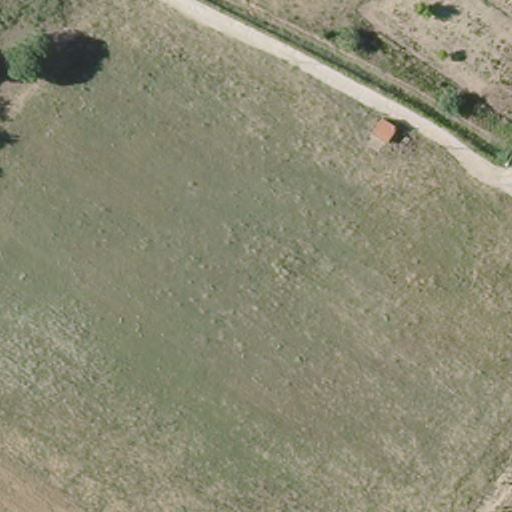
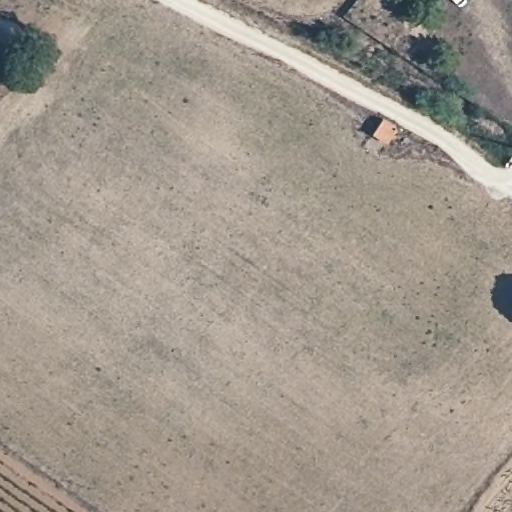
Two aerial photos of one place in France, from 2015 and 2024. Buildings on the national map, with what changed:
unchanged [(371,111),(390,124),(382,143),(361,133),(371,111)]

